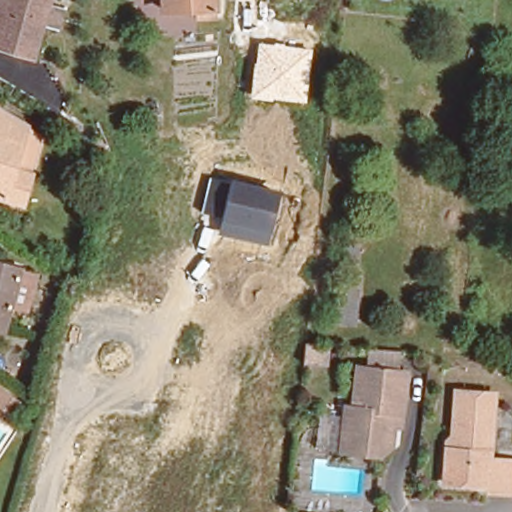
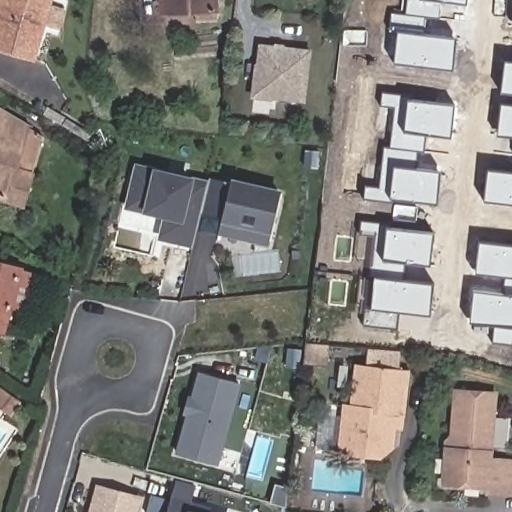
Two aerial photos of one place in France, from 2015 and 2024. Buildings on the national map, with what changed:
unchanged [(49,5),(67,11),(62,30),(43,25),(33,61),(0,52),(0,19),(2,12),(0,12),(0,0),(51,0),(49,5)]
unchanged [(218,21),(200,21),(199,10),(163,12),(162,0),(217,0),(218,21)]
new [(394,62),(397,32),(390,30),(392,11),(405,13),(407,0),(467,0),(467,4),(441,0),(439,16),(426,16),(424,33),(456,38),(453,69),(394,62)]
unchanged [(259,43),(313,49),(306,102),(273,98),(272,101),(251,98),(254,63),(257,63),(259,43)]
new [(505,60),(512,61),(512,93),(501,91),(505,60)]
new [(394,197),(394,201),(364,198),(365,186),(380,187),(384,146),(390,147),(395,106),(380,105),(382,92),(408,95),(408,99),(454,105),(450,137),(426,134),(424,150),(418,150),(415,168),(439,170),(437,203),(394,197)]
new [(501,103),(512,105),(512,137),(497,135),(501,103)]
unchanged [(0,194),(0,109),(21,123),(36,133),(25,171),(20,191),(17,199),(3,194),(0,194)]
demolished [(172,138),(207,131),(213,161),(177,168),(172,138)]
new [(193,247),(156,239),(160,217),(143,212),(123,208),(134,163),(155,166),(198,176),(210,178),(203,212),(193,247)]
new [(487,168),(512,172),(512,203),(483,200),(487,168)]
unchanged [(231,180),(281,191),(269,245),(219,234),(223,216),(203,212),(210,178),(231,180)]
new [(429,265),(404,262),(402,279),(432,283),(430,314),(399,311),(398,328),(362,324),(372,235),(360,234),(361,230),(361,221),(389,224),(389,228),(433,232),(429,265)]
new [(495,325),(469,322),(473,290),(504,293),(506,276),(475,273),(479,241),(512,245),(512,344),(492,342),(495,325)]
unchanged [(348,323),(324,320),(325,310),(333,311),(338,274),(341,246),(353,247),(350,275),(354,276),(348,323)]
unchanged [(28,277),(18,312),(1,307),(0,309),(0,268),(11,271),(28,277)]
unchanged [(302,364),(305,342),(332,345),(329,369),(302,364)]
unchanged [(395,417),(388,416),(382,449),(370,461),(334,455),(342,408),(350,408),(357,368),(402,376),(395,417)]
new [(175,453),(197,371),(242,383),(220,465),(175,453)]
unchanged [(13,415),(0,407),(0,387),(6,391),(22,402),(13,415)]
unchanged [(486,393),(485,464),(512,464),(511,496),(484,495),(484,489),(442,488),(443,456),(446,455),(448,392),(486,393)]
new [(142,496),(138,512),(87,512),(95,484),(142,496)]
new [(211,506),(210,512),(164,512),(169,494),(211,506)]

